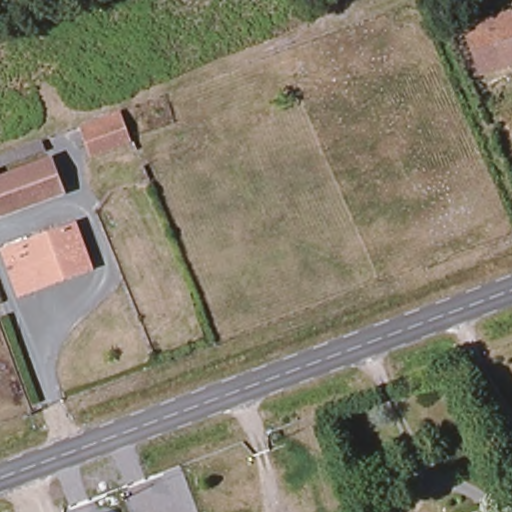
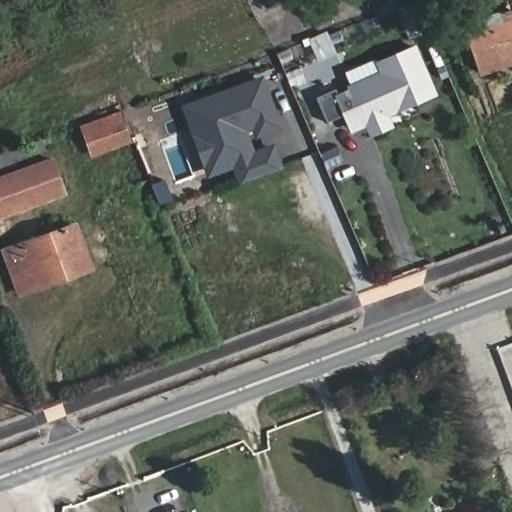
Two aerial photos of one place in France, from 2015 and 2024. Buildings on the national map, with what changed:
unchanged [(465,33),(512,19),(512,67),(479,78),(465,33)]
new [(389,115),(393,126),(369,135),(366,126),(348,133),(342,115),(325,122),(316,97),(336,89),(338,91),(347,87),(346,84),(377,72),(373,60),(416,43),(437,95),(389,115)]
new [(195,127),(187,107),(267,78),(283,122),(264,130),(261,122),(248,126),(258,154),(278,145),(284,165),(248,179),(241,160),(203,175),(186,130),(195,127)]
unchanged [(79,128),(119,111),(133,144),(94,160),(79,128)]
unchanged [(67,194),(0,220),(0,176),(52,156),(67,194)]
unchanged [(0,251),(77,225),(95,270),(17,298),(0,255),(0,251)]

